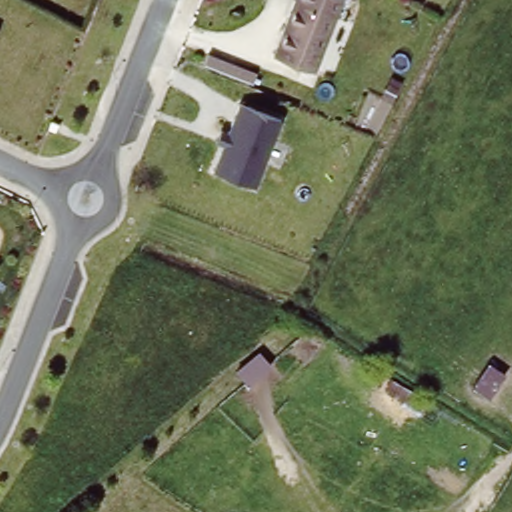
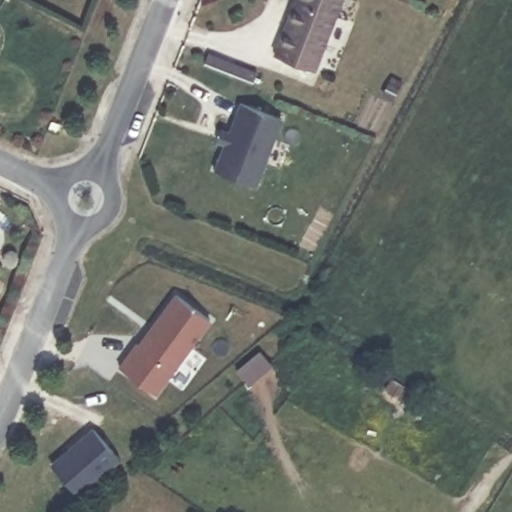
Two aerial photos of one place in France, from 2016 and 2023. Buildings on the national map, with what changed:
unchanged [(351,20),(338,49),(323,42),(314,66),(276,49),(293,0),(340,0),(334,13),(351,20)]
unchanged [(0,28),(0,24),(1,25),(0,28)]
unchanged [(275,119),(251,183),(211,171),(233,108),(275,119)]
new [(134,340),(138,342),(173,293),(211,321),(157,396),(115,367),(134,340)]
new [(93,428),(117,457),(76,493),(51,465),(93,428)]

